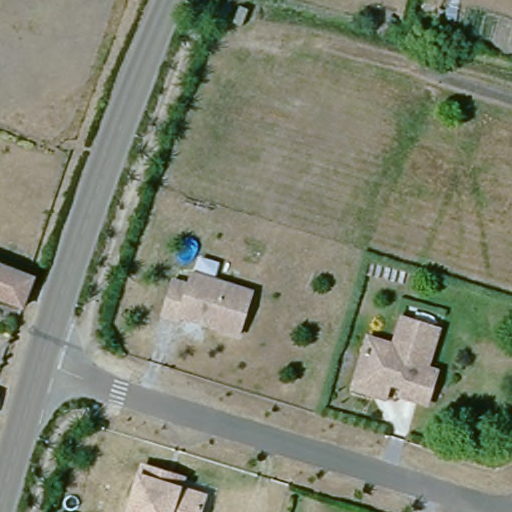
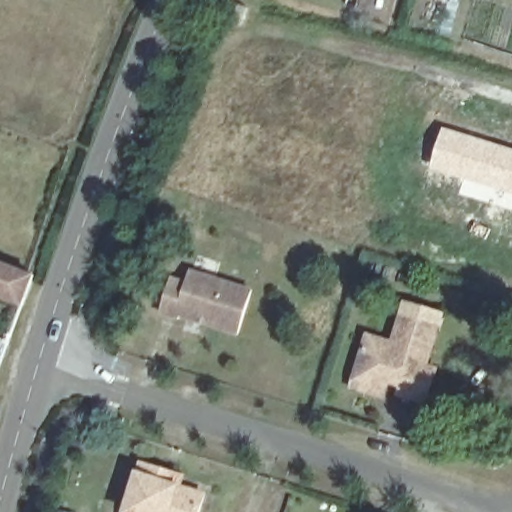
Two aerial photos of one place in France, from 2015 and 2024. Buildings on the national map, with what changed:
new [(443,126),(512,148),(512,205),(495,200),(494,204),(458,193),(462,179),(430,168),(443,126)]
unchanged [(18,304),(0,298),(0,263),(31,274),(18,304)]
unchanged [(178,312),(176,315),(161,310),(171,275),(186,280),(191,268),(246,284),(232,329),(208,321),(196,318),(178,312)]
unchanged [(347,386),(352,370),(362,335),(388,342),(396,314),(432,326),(419,364),(431,368),(420,400),(395,392),(397,384),(384,380),(378,395),(347,386)]
unchanged [(138,466),(163,473),(178,479),(175,489),(200,495),(195,512),(125,512),(138,466)]

